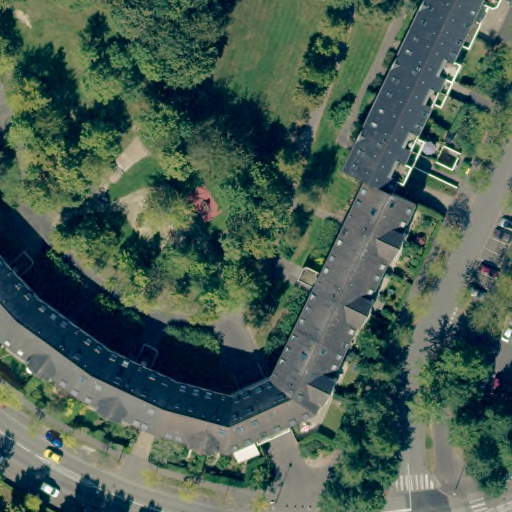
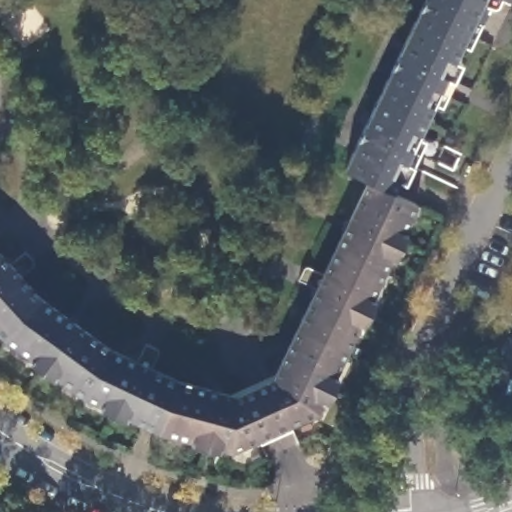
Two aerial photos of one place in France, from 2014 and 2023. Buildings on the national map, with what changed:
unchanged [(452,67),(393,189),(368,177),(367,177),(343,166),(356,140),(354,139),(355,136),(358,137),(359,134),(364,123),(379,94),(388,74),(390,69),(388,68),(390,64),(392,65),(398,52),(414,20),(421,7),(424,0),(444,0),(452,67)]
unchanged [(469,30),(452,67),(444,0),(483,0),(469,30)]
unchanged [(414,199),(404,222),(406,223),(389,256),(387,255),(372,286),(375,288),(357,324),(356,324),(335,366),(337,368),(316,409),(232,447),(188,434),(189,430),(162,423),(137,410),(133,416),(98,399),(100,395),(86,387),(65,372),(61,377),(27,353),(31,348),(7,331),(0,322),(0,250),(11,262),(26,248),(36,259),(20,273),(41,295),(112,345),(179,376),(189,378),(273,375),(317,284),(299,275),(299,274),(303,266),(307,262),(324,270),(345,226),(368,177),(393,189),(414,199)]

